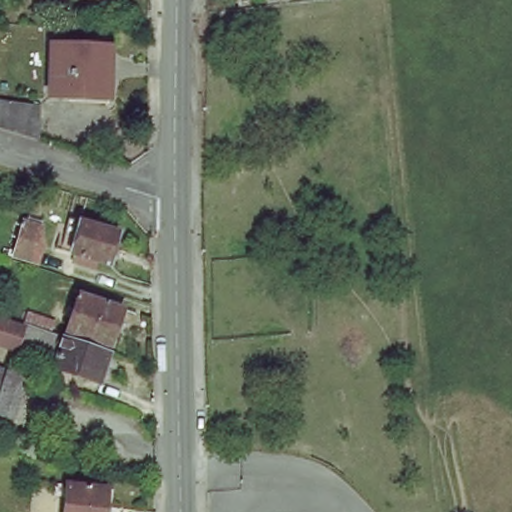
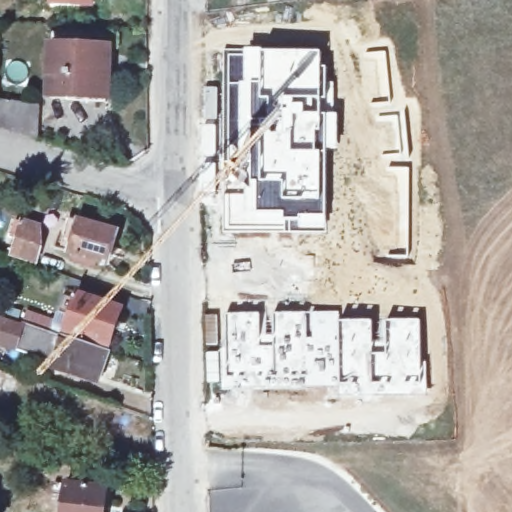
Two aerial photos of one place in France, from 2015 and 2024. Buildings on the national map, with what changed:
new [(95,0),(95,7),(50,5),(50,0),(95,0)]
unchanged [(52,45),(108,46),(107,93),(50,91),(52,45)]
new [(203,86),(218,87),(218,111),(223,111),(223,110),(225,110),(226,49),(323,50),(324,66),(328,66),(329,89),(333,89),(332,111),(339,111),(340,150),(328,150),(328,232),(223,232),(218,155),(214,155),(212,132),(206,132),(206,120),(202,120),(203,86)]
unchanged [(0,124),(0,97),(38,109),(31,132),(0,124)]
unchanged [(60,211),(65,195),(66,191),(80,195),(79,199),(75,215),(60,211)]
unchanged [(79,222),(116,233),(106,266),(69,255),(79,222)]
unchanged [(21,223),(36,228),(26,260),(11,255),(21,223)]
unchanged [(83,296),(125,310),(112,347),(70,333),(83,296)]
new [(219,351),(221,376),(226,375),(226,313),(262,312),(262,334),(274,335),(274,312),(340,310),(340,320),(341,386),(222,388),(221,383),(206,383),(206,352),(219,351)]
new [(421,318),(427,393),(359,394),(359,386),(341,386),(340,320),(421,318)]
unchanged [(72,338),(110,350),(101,377),(82,371),(80,377),(57,370),(58,363),(0,345),(0,319),(67,340),(68,337),(72,338)]
demolished [(11,375),(0,409),(0,371),(11,375)]
unchanged [(65,484),(105,488),(102,512),(62,512),(65,484)]

